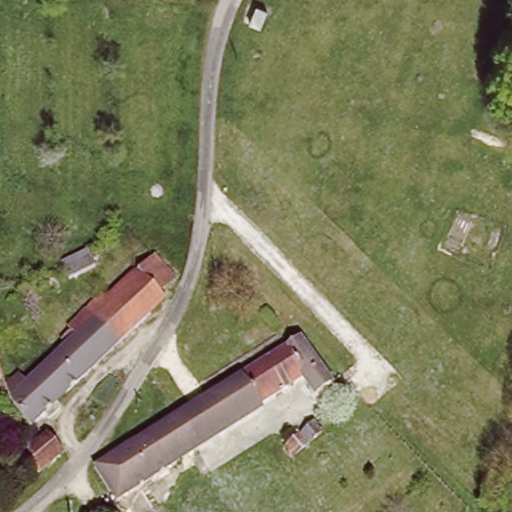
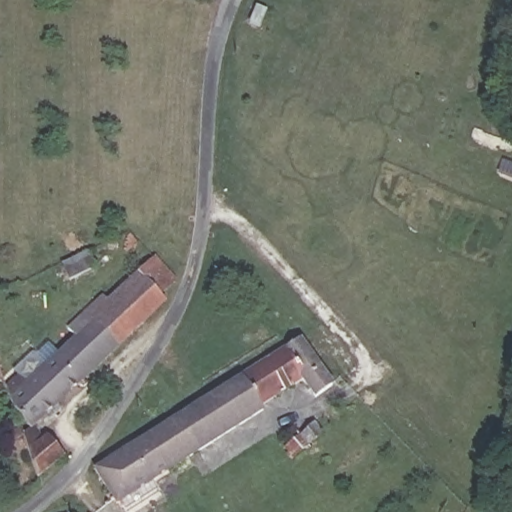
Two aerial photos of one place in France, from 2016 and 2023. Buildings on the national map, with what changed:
unchanged [(25,420),(7,401),(5,395),(1,383),(10,375),(21,364),(27,371),(68,331),(62,325),(96,292),(101,297),(130,268),(147,251),(167,272),(150,288),(154,293),(25,420)]
unchanged [(180,410),(300,334),(329,381),(311,392),(300,374),(258,400),(262,406),(200,445),(180,410)]
unchanged [(0,375),(0,371),(1,375),(0,375)]
unchanged [(118,496),(96,461),(180,410),(200,445),(118,496)]
unchanged [(300,434),(317,418),(328,430),(311,446),(300,434)]
unchanged [(16,429),(25,420),(32,432),(37,427),(57,446),(31,471),(16,429)]

